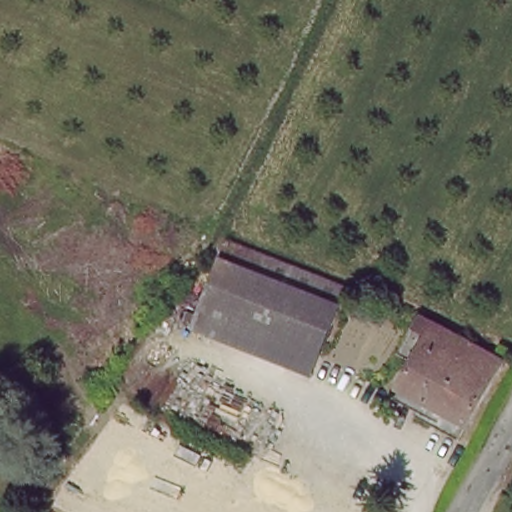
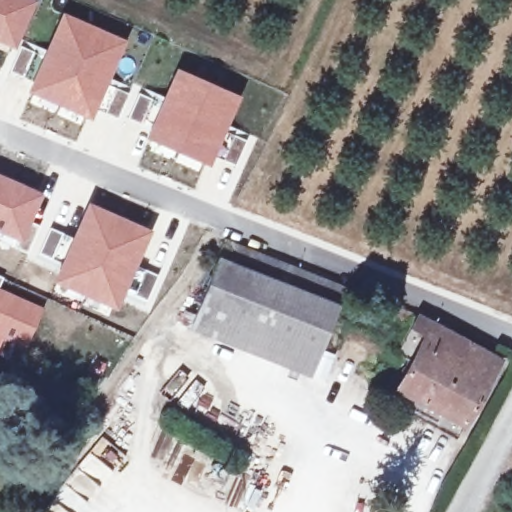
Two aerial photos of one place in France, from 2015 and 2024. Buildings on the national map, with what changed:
new [(14,49),(0,44),(0,0),(36,0),(14,49)]
new [(61,11),(126,39),(91,118),(26,90),(61,11)]
new [(175,66),(241,94),(211,166),(145,137),(175,66)]
new [(42,191),(21,242),(0,233),(0,174),(42,191)]
new [(151,229),(116,309),(54,280),(60,263),(37,253),(49,227),(72,236),(88,201),(151,229)]
unchanged [(240,254),(339,293),(331,311),(212,262),(219,246),(240,254)]
unchanged [(331,311),(303,380),(183,332),(212,262),(331,311)]
new [(42,306),(18,365),(0,359),(0,286),(42,306)]
unchanged [(457,435),(410,412),(419,394),(397,383),(410,358),(393,351),(413,311),(430,318),(429,323),(497,354),(457,435)]

